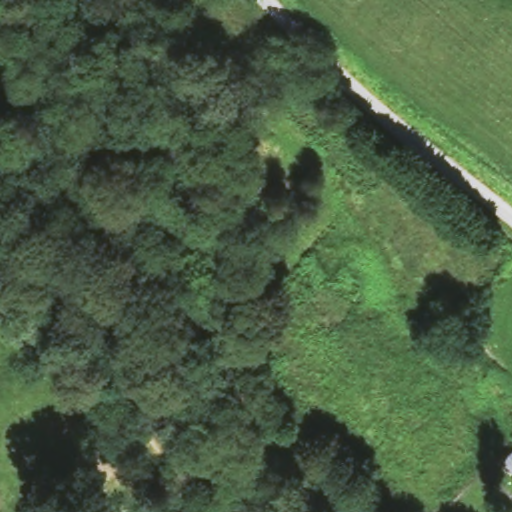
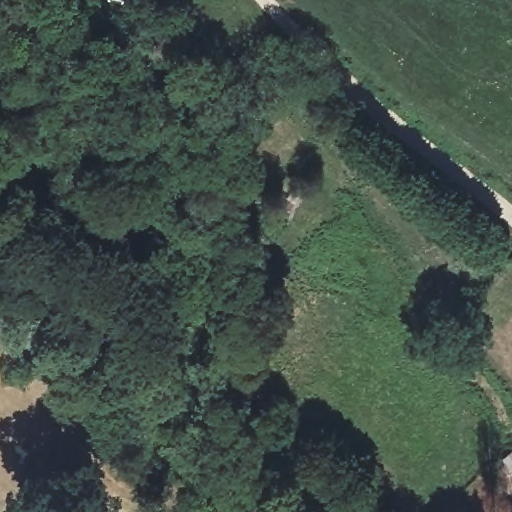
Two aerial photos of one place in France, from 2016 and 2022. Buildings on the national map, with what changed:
unchanged [(254,187),(257,175),(297,196),(277,230),(263,225),(277,201),(254,187)]

